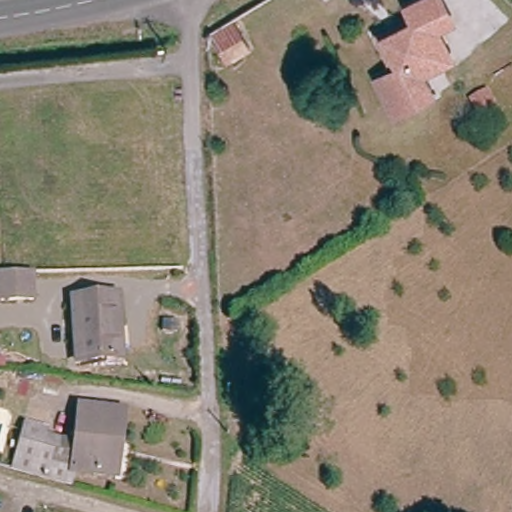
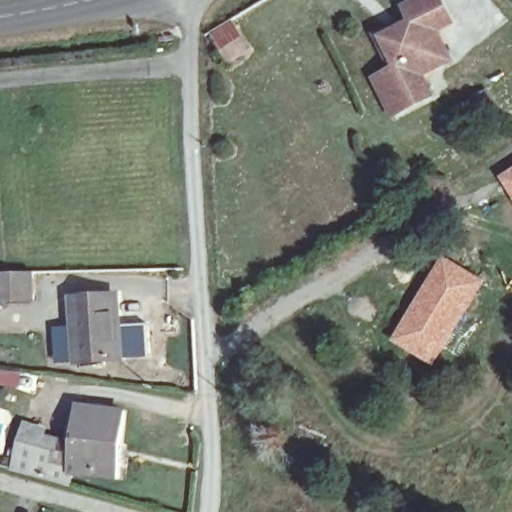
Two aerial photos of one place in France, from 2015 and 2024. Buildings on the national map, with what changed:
unchanged [(448,0),(454,13),(457,18),(440,26),(448,41),(455,56),(425,71),(437,95),(399,113),(381,75),(397,66),(380,31),(414,15),(408,5),(417,0),(448,0)]
unchanged [(251,54),(227,66),(210,35),(231,21),(251,54)]
unchanged [(496,107),(483,115),(475,101),(489,94),(496,107)]
new [(504,179),(512,174),(512,192),(504,179)]
new [(482,283),(433,363),(399,344),(418,314),(413,311),(444,263),(482,283)]
unchanged [(38,274),(39,301),(0,303),(0,274),(10,274),(38,274)]
unchanged [(124,295),(128,364),(78,366),(74,298),(124,295)]
new [(21,390),(0,387),(0,370),(23,373),(21,390)]
unchanged [(29,421),(49,427),(48,434),(60,438),(79,439),(81,405),(126,408),(120,479),(75,475),(71,488),(14,472),(24,438),(29,421)]

